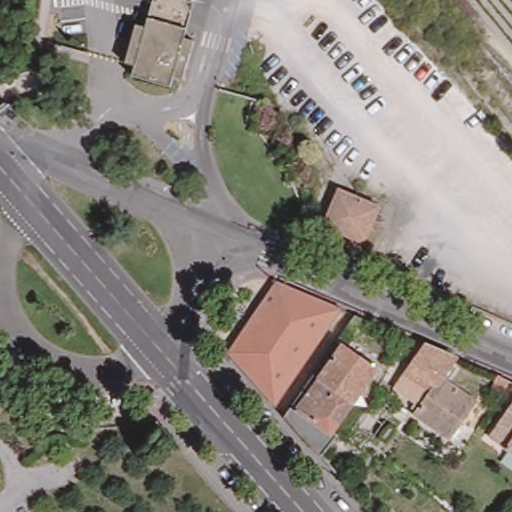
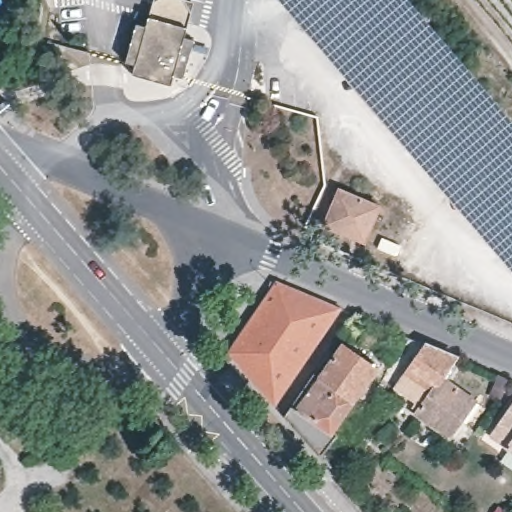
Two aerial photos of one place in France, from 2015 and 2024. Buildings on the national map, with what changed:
unchanged [(193,4),(186,29),(147,18),(152,0),(179,0),(193,4)]
new [(512,118),(512,269),(280,0),(410,0),(512,118)]
unchanged [(186,29),(183,39),(193,42),(182,80),(172,77),(169,87),(131,77),(133,67),(124,64),(135,25),(144,28),(147,18),(186,29)]
unchanged [(345,188),(385,206),(370,241),(330,224),(345,188)]
unchanged [(235,348),(282,277),(346,304),(281,400),(235,348)]
unchanged [(298,407),(348,333),(364,309),(375,314),(357,340),(389,362),(345,425),(349,429),(331,451),(294,410),(298,407)]
unchanged [(462,353),(457,361),(461,365),(452,378),(447,374),(437,387),(438,388),(428,402),(402,384),(430,340),(462,353)]
unchanged [(427,402),(428,402),(438,388),(447,374),(452,378),(461,383),(481,396),(456,433),(422,411),(427,402)]
unchanged [(507,381),(500,394),(488,388),(495,375),(507,381)]
unchanged [(512,402),(512,453),(488,436),(512,402)]
unchanged [(389,440),(384,436),(392,424),(397,428),(389,440)]
unchanged [(2,482),(0,484),(0,481),(2,482)]
unchanged [(495,512),(499,506),(508,512),(495,512)]

